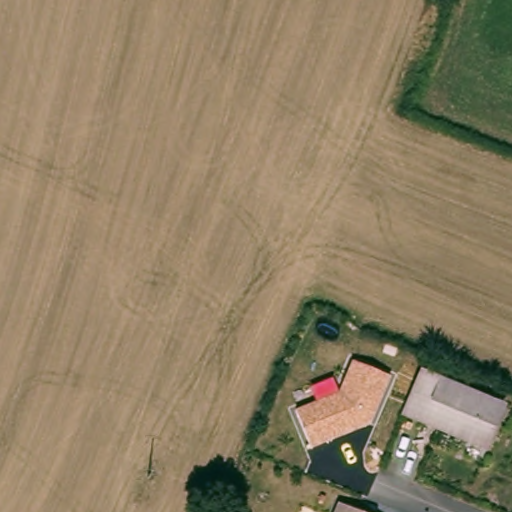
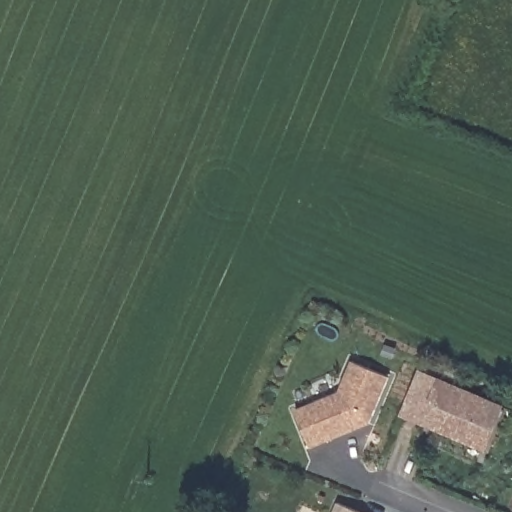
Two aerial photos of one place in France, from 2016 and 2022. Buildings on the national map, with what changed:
unchanged [(403,362),(383,409),(324,432),(309,395),(353,378),(366,346),(403,362)]
unchanged [(512,399),(512,403),(495,442),(412,406),(430,365),(512,399)]
unchanged [(329,512),(332,502),(355,512),(329,512)]

